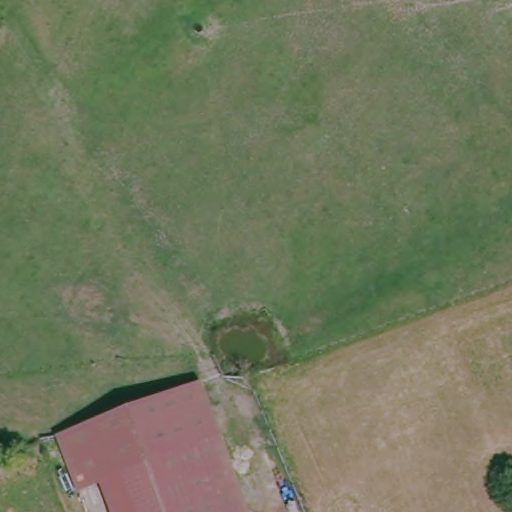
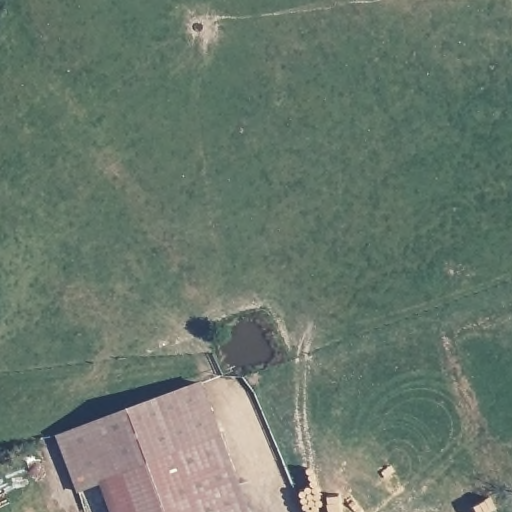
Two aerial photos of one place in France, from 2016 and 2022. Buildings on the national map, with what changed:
unchanged [(249,512),(136,512),(122,476),(98,485),(77,431),(200,383),(249,512)]
unchanged [(98,485),(78,492),(57,438),(77,431),(98,485)]
unchanged [(136,512),(109,512),(98,485),(122,476),(136,512)]

